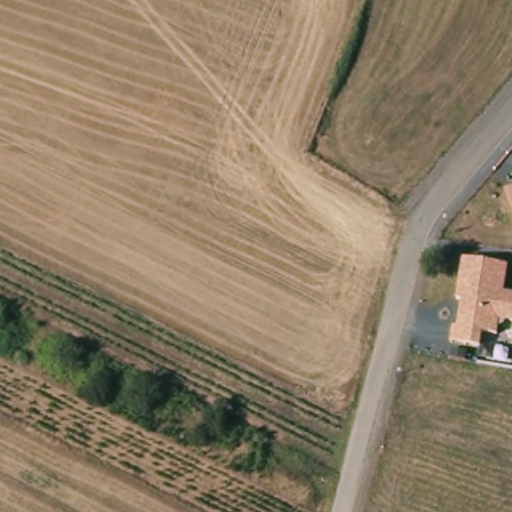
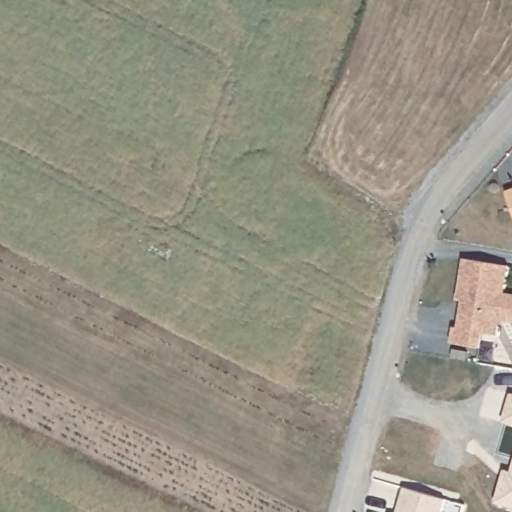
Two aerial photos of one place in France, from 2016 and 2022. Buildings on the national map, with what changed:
unchanged [(510,192),(512,191),(512,199),(510,192)]
unchanged [(453,338),(456,323),(462,324),(465,295),(460,295),(467,254),(512,261),(507,288),(512,289),(512,317),(502,315),(500,330),(486,328),(483,343),(453,338)]
new [(502,423),(510,393),(512,394),(512,426),(502,423)]
new [(504,470),(511,472),(512,470),(512,508),(495,503),(504,470)]
new [(446,498),(442,512),(397,512),(403,487),(446,498)]

